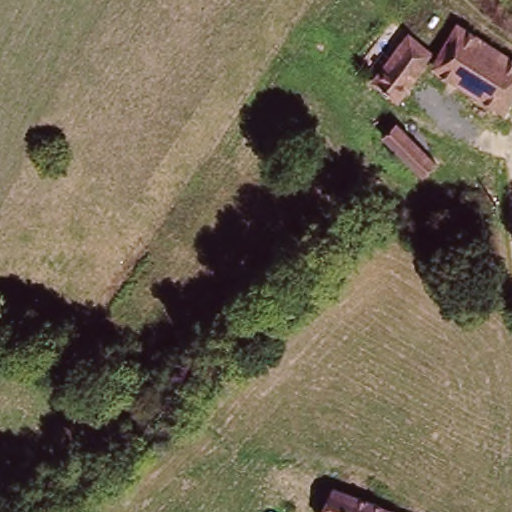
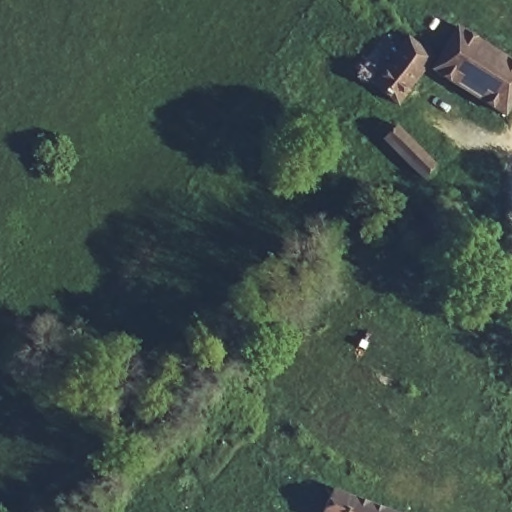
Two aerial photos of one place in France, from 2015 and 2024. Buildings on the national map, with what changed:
unchanged [(512,104),(508,113),(433,70),(460,26),(512,57),(512,104)]
unchanged [(435,56),(399,103),(373,83),(410,36),(435,56)]
unchanged [(425,175),(386,140),(399,125),(439,160),(425,175)]
unchanged [(391,512),(330,512),(338,490),(391,512)]

